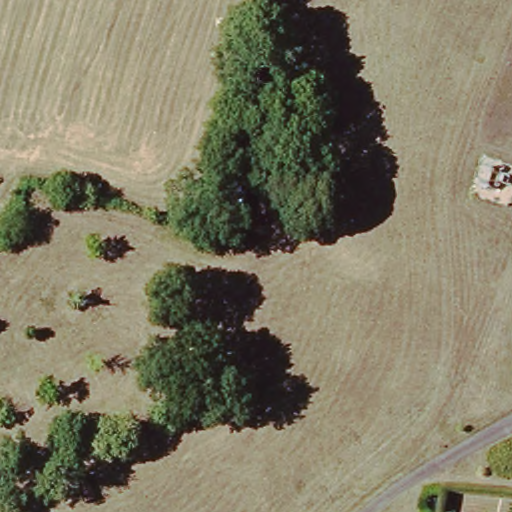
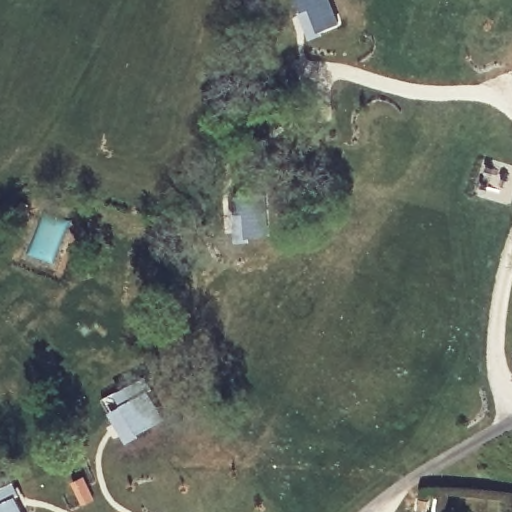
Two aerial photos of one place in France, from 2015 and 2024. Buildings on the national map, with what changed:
new [(306,40),(292,0),(330,0),(339,26),(306,40)]
unchanged [(210,237),(230,170),(253,177),(235,243),(210,237)]
new [(122,446),(106,412),(99,399),(145,374),(153,387),(170,417),(122,446)]
unchanged [(82,510),(71,484),(84,479),(95,505),(82,510)]
new [(12,481),(17,494),(24,512),(0,512),(0,486),(12,481)]

